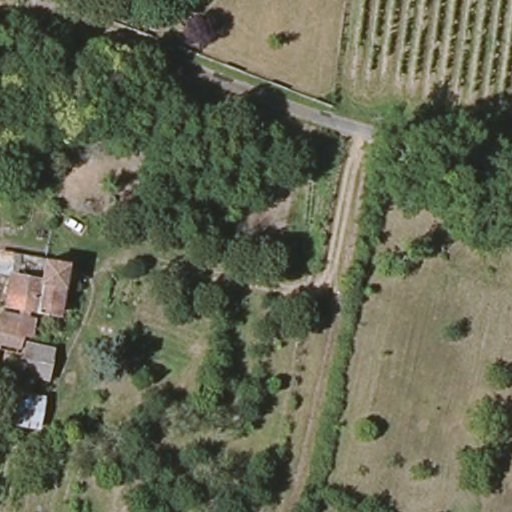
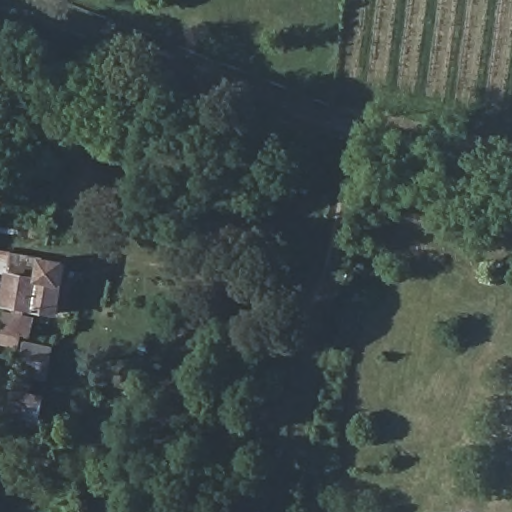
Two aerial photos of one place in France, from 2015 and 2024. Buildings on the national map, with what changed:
unchanged [(0,194),(0,178),(18,182),(15,197),(0,194)]
unchanged [(62,320),(30,315),(29,318),(24,317),(25,313),(7,310),(18,260),(70,268),(62,320)]
unchanged [(6,318),(36,325),(33,340),(26,338),(22,353),(3,350),(0,361),(0,342),(6,318)]
unchanged [(55,355),(50,384),(25,378),(31,350),(55,355)]
unchanged [(37,400),(51,403),(46,431),(17,426),(23,389),(37,392),(37,400)]

